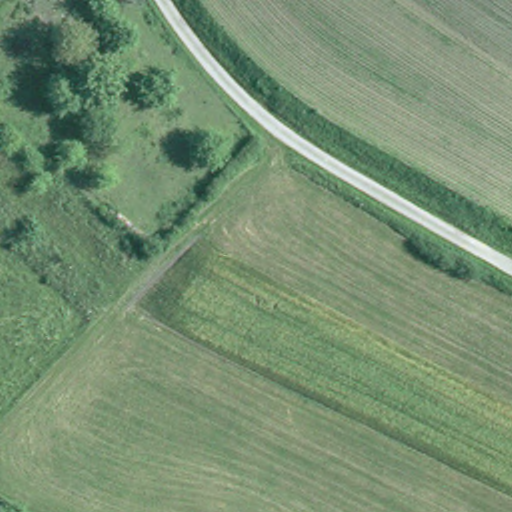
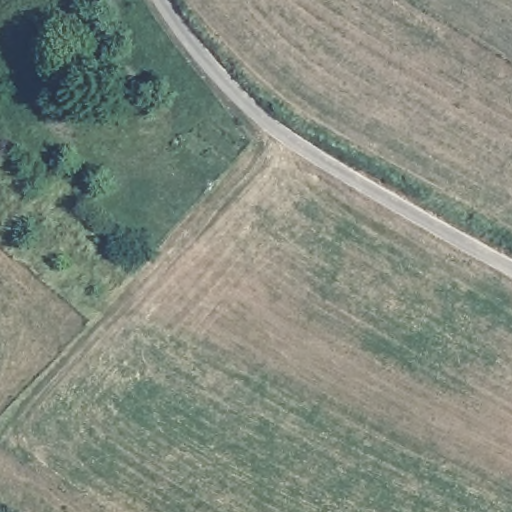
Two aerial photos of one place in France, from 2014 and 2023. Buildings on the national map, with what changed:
[]

